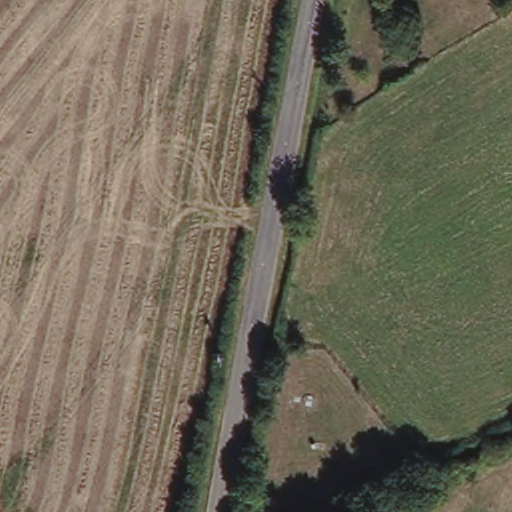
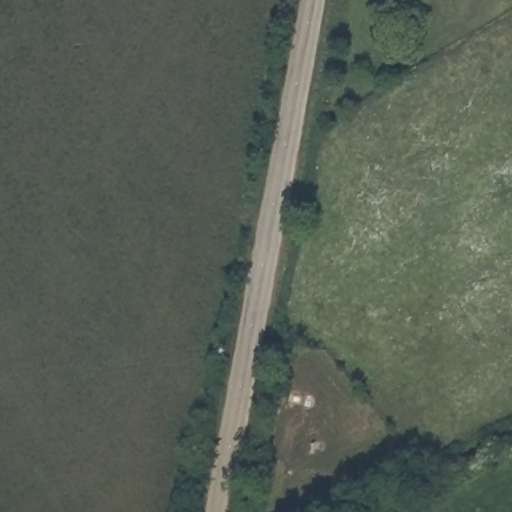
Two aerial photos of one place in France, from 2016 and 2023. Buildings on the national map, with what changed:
[]

